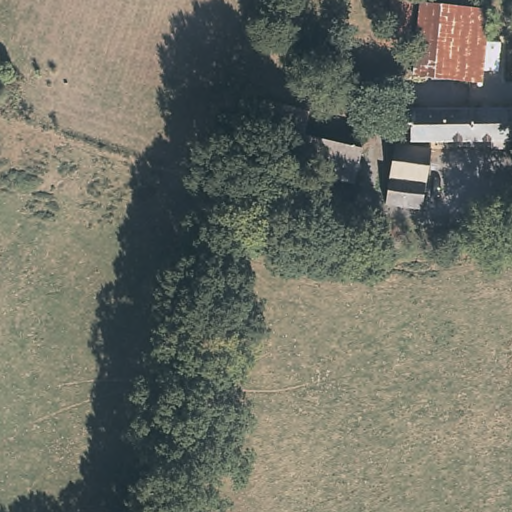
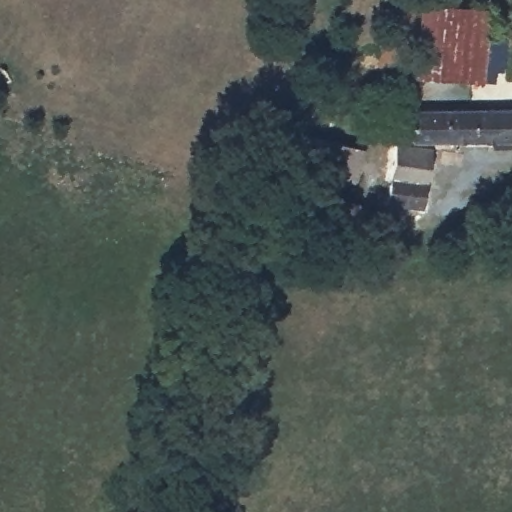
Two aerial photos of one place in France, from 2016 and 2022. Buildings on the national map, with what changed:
unchanged [(412,32),(386,29),(390,0),(416,0),(412,32)]
unchanged [(420,2),(489,9),(485,55),(483,82),(413,75),(415,47),(420,2)]
unchanged [(315,112),(310,136),(302,171),(248,159),(262,101),(315,112)]
unchanged [(512,139),(409,140),(410,108),(512,106),(512,139)]
unchanged [(368,149),(361,184),(302,171),(310,136),(368,149)]
unchanged [(430,147),(423,210),(383,205),(392,142),(430,147)]

